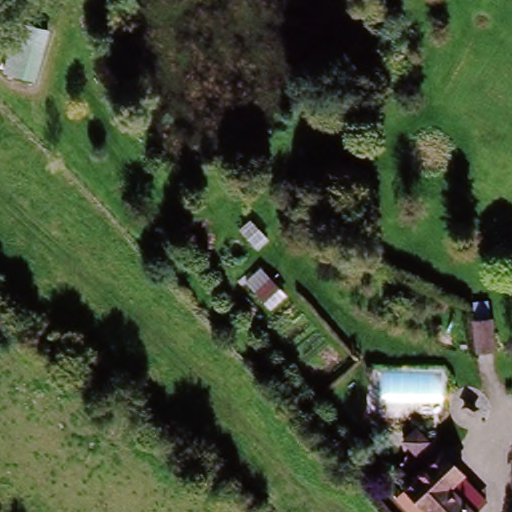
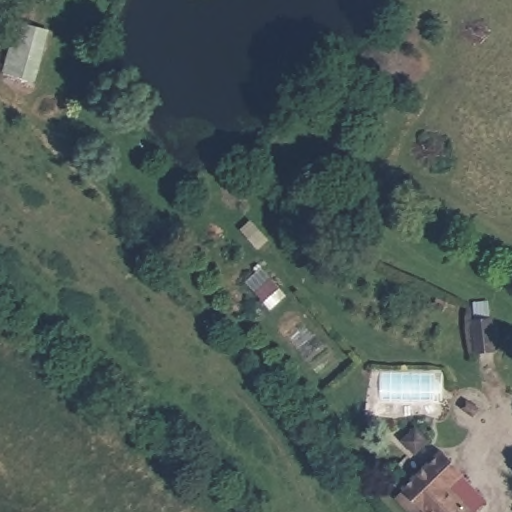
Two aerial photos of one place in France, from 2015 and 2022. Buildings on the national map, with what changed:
unchanged [(19,26),(49,34),(37,82),(7,75),(19,26)]
unchanged [(490,353),(487,322),(504,321),(507,352),(490,353)]
unchanged [(388,398),(390,369),(445,371),(445,400),(388,398)]
unchanged [(415,437),(427,425),(440,438),(427,450),(415,437)]
unchanged [(405,489),(442,455),(462,479),(460,481),(483,508),(479,512),(426,512),(405,489)]

